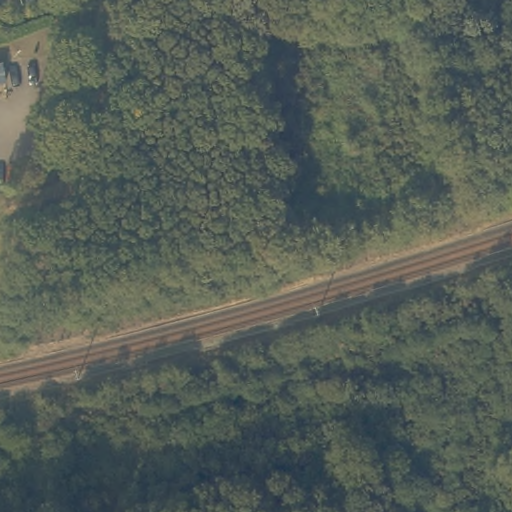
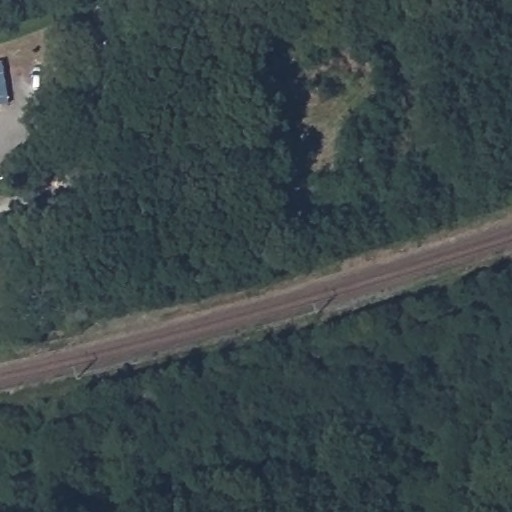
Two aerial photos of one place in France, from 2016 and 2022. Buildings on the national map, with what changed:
unchanged [(6,58),(9,79),(0,80),(0,59),(6,58)]

